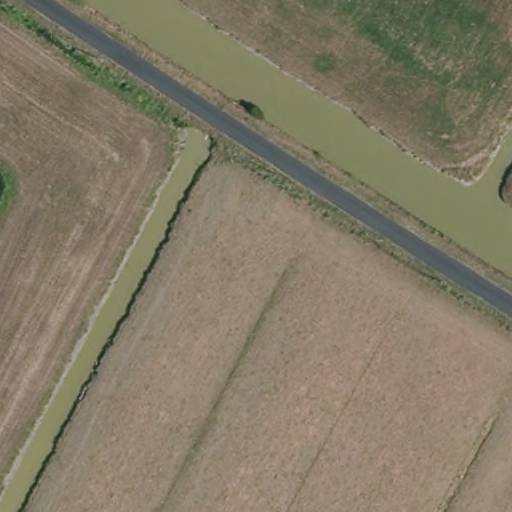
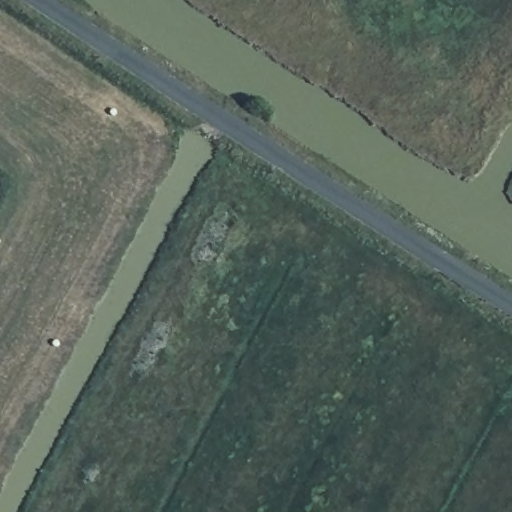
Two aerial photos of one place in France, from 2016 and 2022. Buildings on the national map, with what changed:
[]

